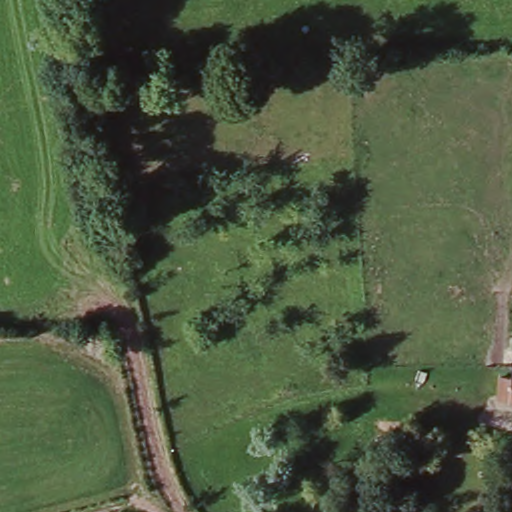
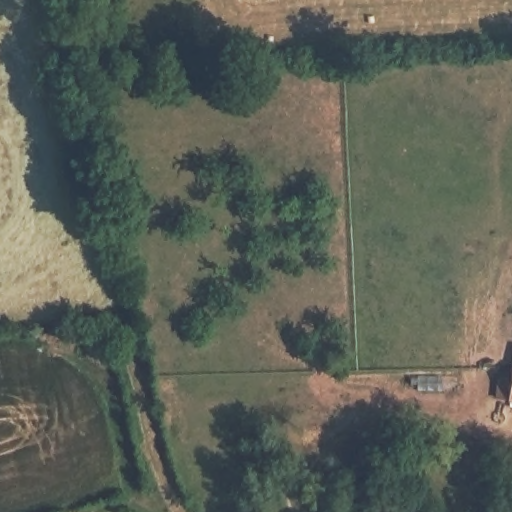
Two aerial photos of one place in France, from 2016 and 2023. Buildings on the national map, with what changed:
unchanged [(508,364),(510,343),(512,343),(512,364),(508,364)]
unchanged [(490,397),(490,373),(506,374),(508,364),(512,364),(512,400),(490,397)]

